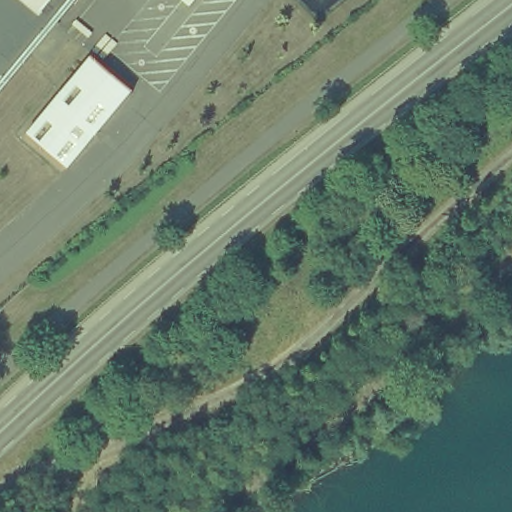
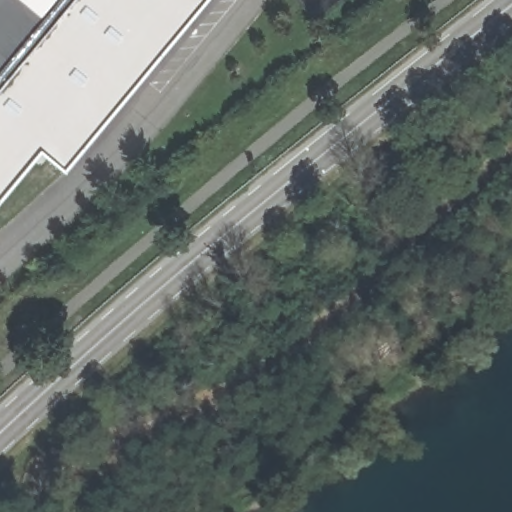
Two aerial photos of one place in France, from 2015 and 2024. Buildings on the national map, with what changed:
unchanged [(80,0),(0,96),(0,0),(80,0)]
new [(44,147),(0,198),(0,96),(80,0),(206,0),(68,168),(44,147)]
demolished [(92,56),(133,90),(68,168),(27,134),(92,56)]

